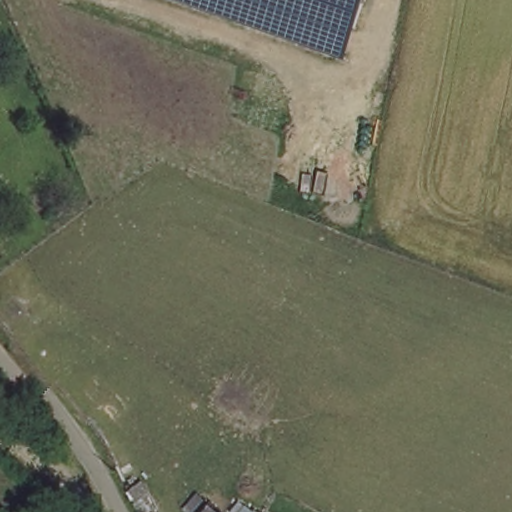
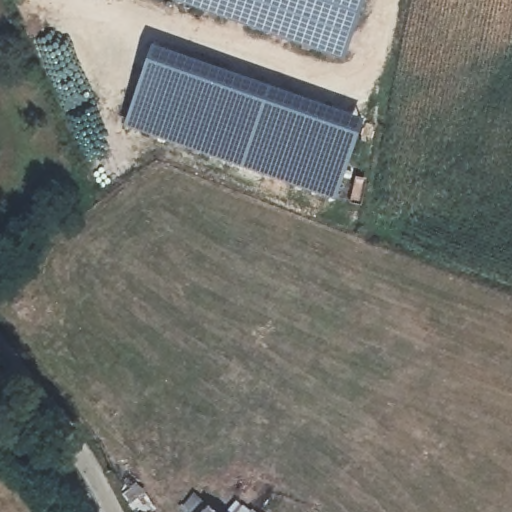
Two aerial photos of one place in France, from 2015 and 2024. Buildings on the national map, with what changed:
new [(172,0),(365,0),(344,60),(172,0)]
new [(152,43),(224,69),(222,75),(217,73),(215,77),(360,131),(337,200),(255,173),(122,126),(152,43)]
unchanged [(99,380),(120,411),(101,425),(80,395),(99,380)]
unchanged [(226,512),(202,512),(212,500),(226,512)]

